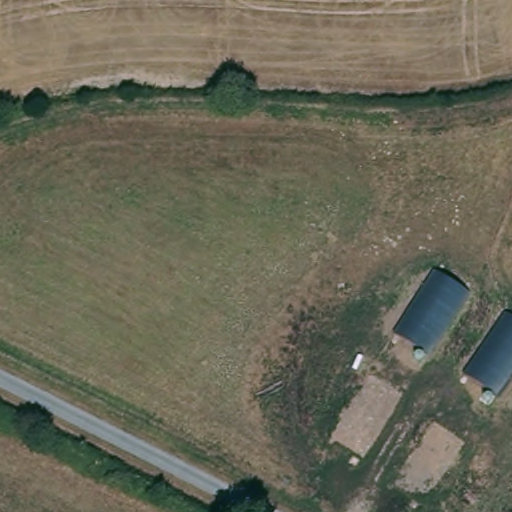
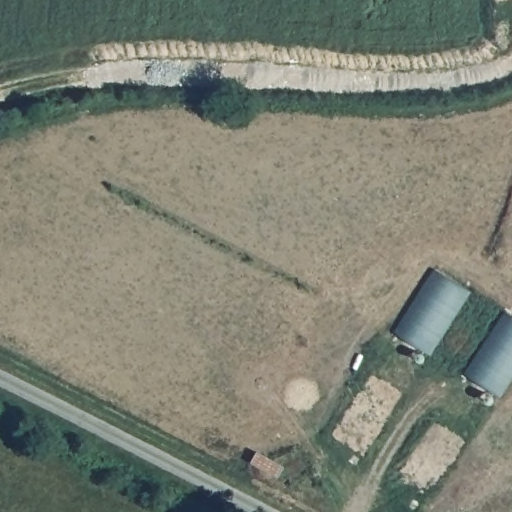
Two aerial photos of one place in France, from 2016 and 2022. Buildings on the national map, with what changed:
unchanged [(395,333),(438,271),(468,290),(423,353),(395,333)]
unchanged [(512,316),(512,370),(493,395),(466,376),(510,315),(512,316)]

